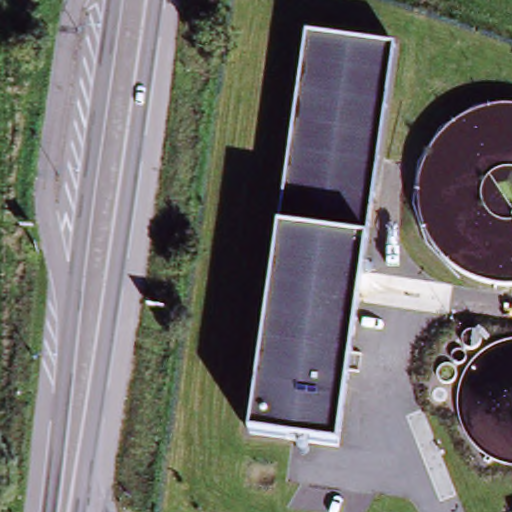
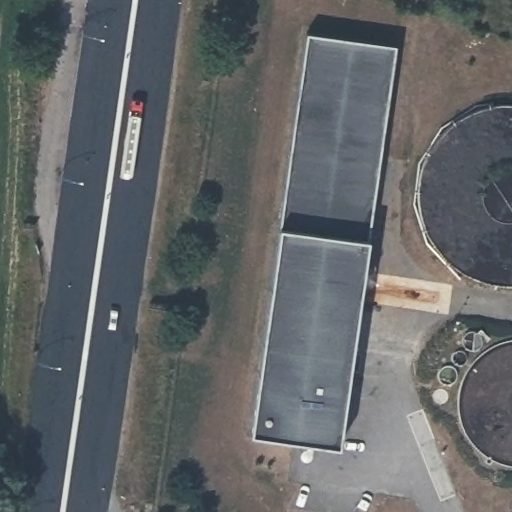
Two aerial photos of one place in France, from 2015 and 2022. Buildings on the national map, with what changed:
unchanged [(278,227),(307,34),(396,46),(367,239),(338,444),(314,441),(309,457),(298,456),(302,439),(249,434),(278,227)]

